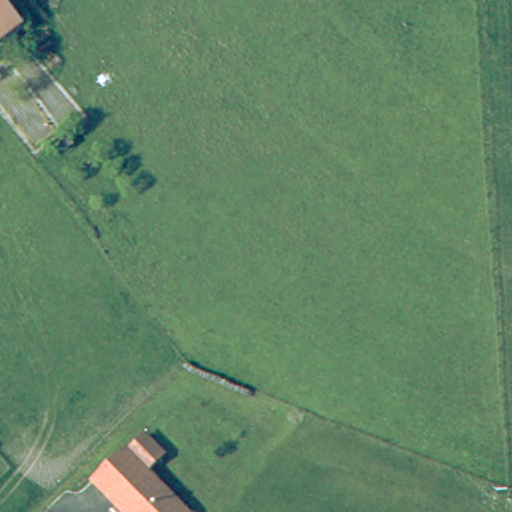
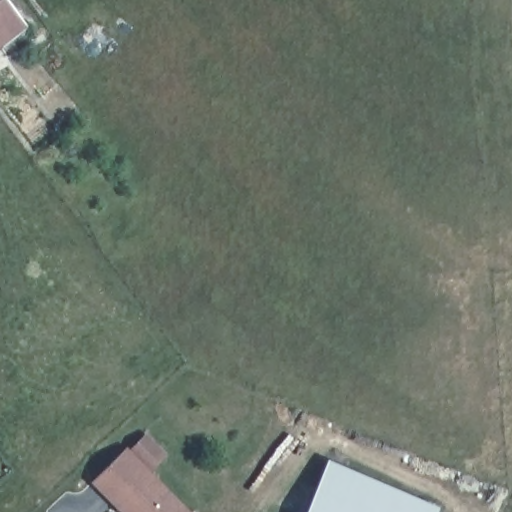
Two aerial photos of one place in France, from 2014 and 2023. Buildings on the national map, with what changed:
unchanged [(24,18),(20,20),(0,37),(0,0),(10,0),(24,18)]
unchanged [(121,512),(95,486),(129,453),(132,456),(146,441),(165,460),(151,474),(188,512),(121,512)]
new [(439,507),(437,512),(304,512),(328,458),(439,507)]

